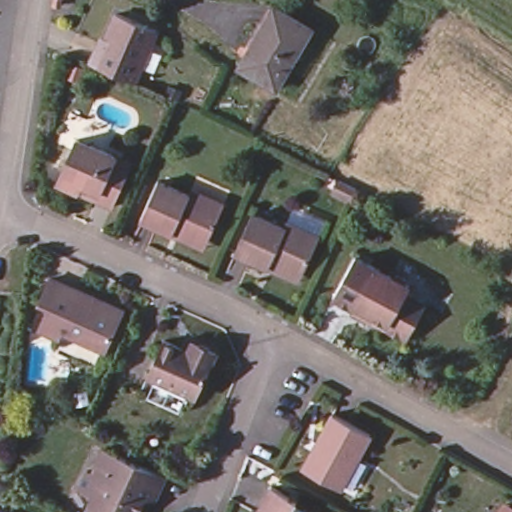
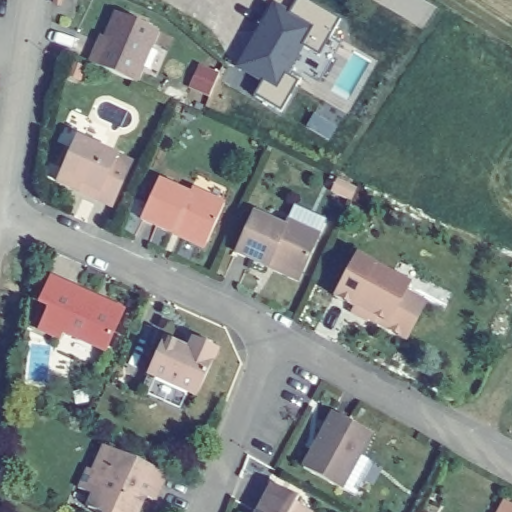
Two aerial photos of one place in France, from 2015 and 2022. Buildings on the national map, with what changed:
unchanged [(276,2),(312,24),(273,88),(270,93),(235,71),(235,70),(276,2)]
unchanged [(155,27),(132,78),(88,59),(95,43),(100,45),(117,9),(155,27)]
unchanged [(76,141),(131,166),(111,210),(95,203),(99,195),(82,187),(77,194),(55,184),(76,141)]
unchanged [(170,234),(150,226),(137,219),(155,182),(168,189),(187,198),(190,190),(222,205),(204,243),(201,249),(170,234)]
unchanged [(352,207),(333,199),(338,186),(358,196),(352,207)]
unchanged [(265,271),(232,258),(247,218),(260,223),(263,215),(315,236),(299,278),(297,284),(265,271)]
unchanged [(408,338),(401,333),(369,316),(367,319),(352,310),(377,265),(392,275),(399,273),(405,276),(407,282),(410,284),(407,291),(417,297),(427,302),(408,338)]
unchanged [(110,349),(60,324),(56,331),(45,325),(35,320),(45,303),(42,301),(53,277),(65,283),(77,289),(127,313),(110,349)]
unchanged [(144,382),(150,368),(167,333),(193,345),(197,337),(220,348),(199,391),(194,389),(187,403),(144,382)]
unchanged [(340,486),(302,465),(333,410),(370,430),(340,486)]
unchanged [(143,501),(139,512),(87,512),(93,500),(77,493),(85,473),(92,476),(104,451),(116,457),(165,479),(153,505),(143,501)]
unchanged [(273,458),(268,466),(257,459),(261,451),(273,458)]
unchanged [(290,509),(295,512),(258,512),(270,489),(287,498),(294,502),(290,509)]

